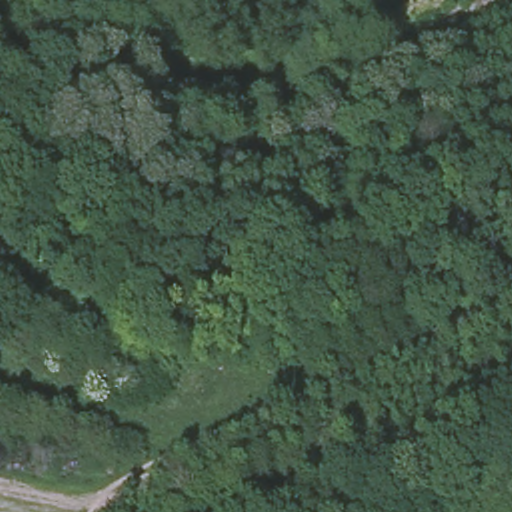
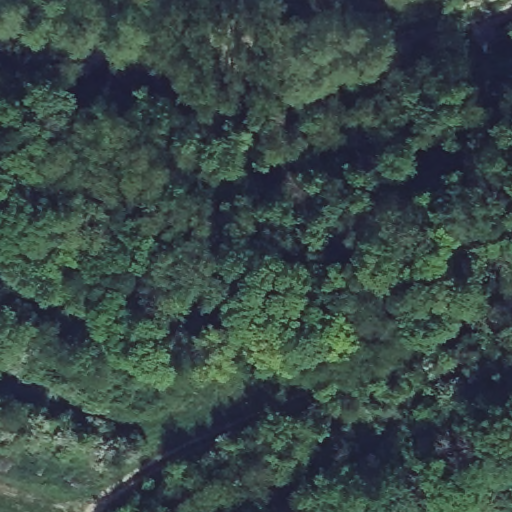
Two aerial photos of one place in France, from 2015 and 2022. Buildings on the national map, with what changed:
[]

